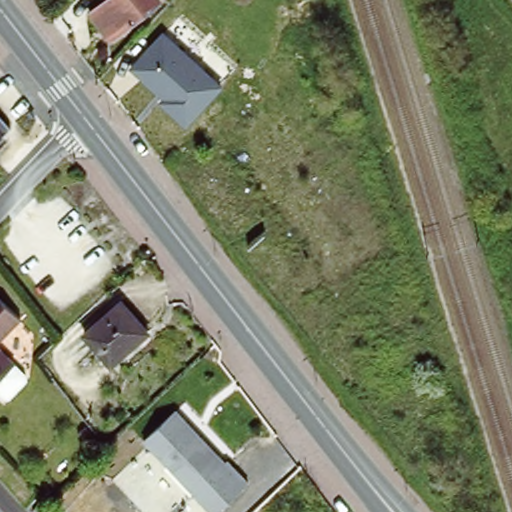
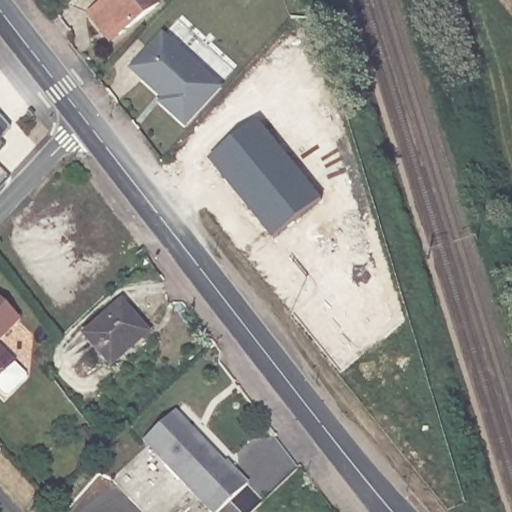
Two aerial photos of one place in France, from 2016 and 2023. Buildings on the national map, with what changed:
unchanged [(98,36),(85,19),(114,0),(145,0),(154,13),(113,41),(107,47),(98,36)]
unchanged [(166,33),(222,91),(187,124),(129,70),(166,33)]
new [(274,239),(209,160),(257,121),(322,200),(274,239)]
unchanged [(7,137),(0,142),(0,129),(7,137)]
unchanged [(119,356),(120,357),(108,368),(82,338),(117,306),(142,334),(119,356)]
unchanged [(17,325),(9,332),(0,341),(0,307),(17,325)]
unchanged [(10,369),(0,379),(0,359),(10,369)]
unchanged [(143,440),(174,411),(223,463),(226,460),(247,483),(217,512),(211,512),(196,495),(148,445),(143,440)]

